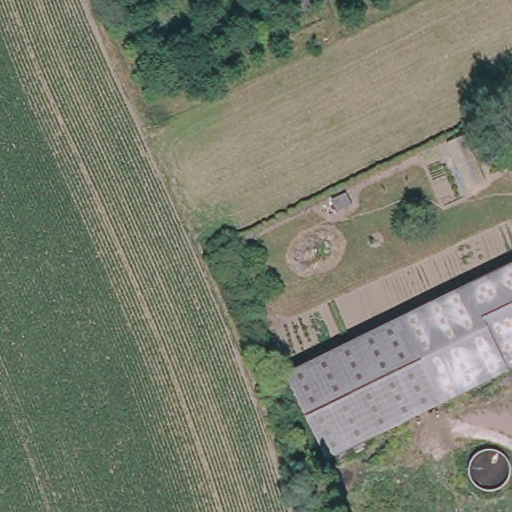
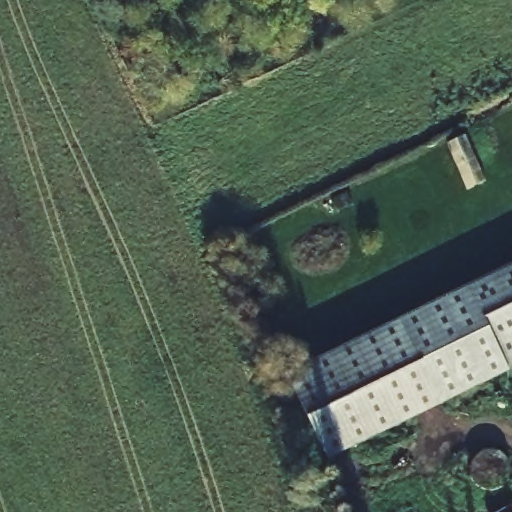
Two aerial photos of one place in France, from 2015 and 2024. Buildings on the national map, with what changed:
unchanged [(512,263),(512,368),(324,460),(283,375),(394,321),(512,263)]

